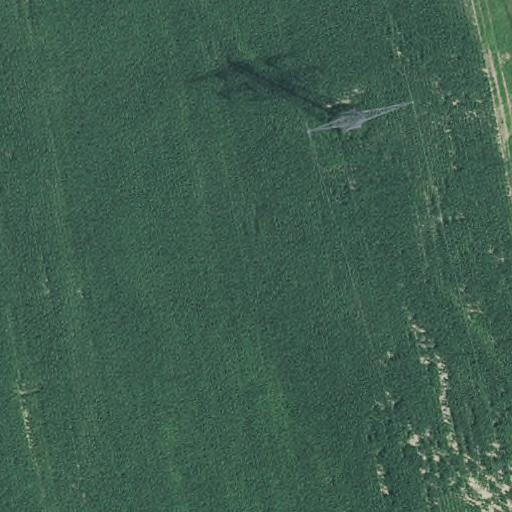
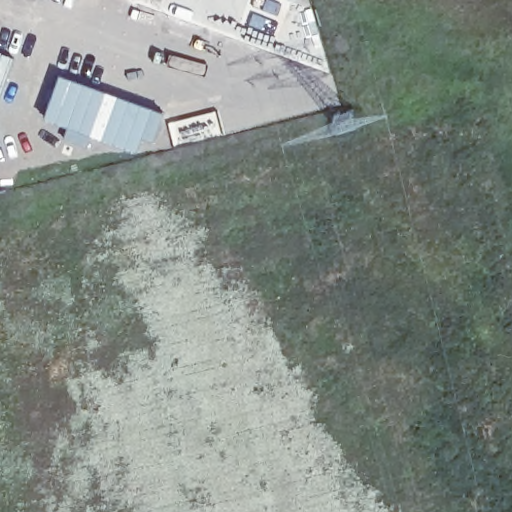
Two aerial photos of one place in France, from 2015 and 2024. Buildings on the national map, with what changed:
new [(296,2),(289,0),(296,0),(296,2)]
new [(13,57),(0,94),(0,52),(13,57)]
new [(60,75),(107,91),(92,135),(86,149),(62,140),(67,127),(44,120),(60,75)]
new [(107,91),(164,112),(154,142),(143,139),(138,152),(92,135),(107,91)]

